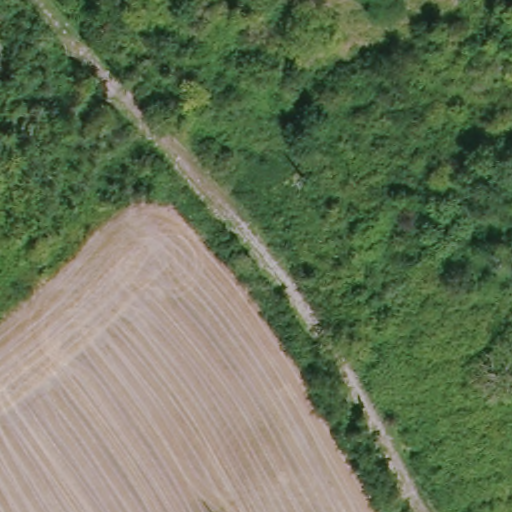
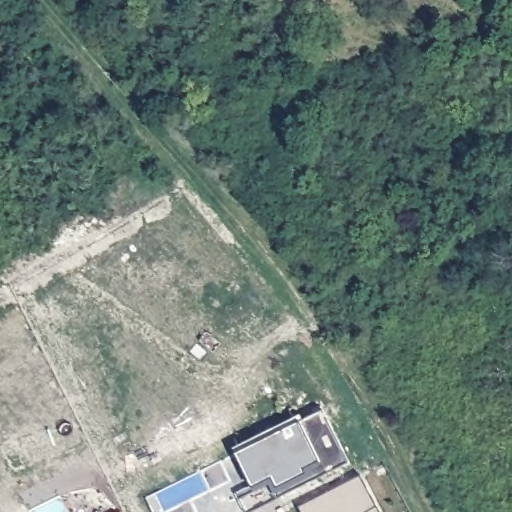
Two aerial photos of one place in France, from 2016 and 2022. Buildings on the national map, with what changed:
new [(252,487),(235,454),(325,411),(352,465),(254,512),(246,512),(237,494),(252,487)]
new [(360,477),(379,512),(303,512),(301,507),(360,477)]

